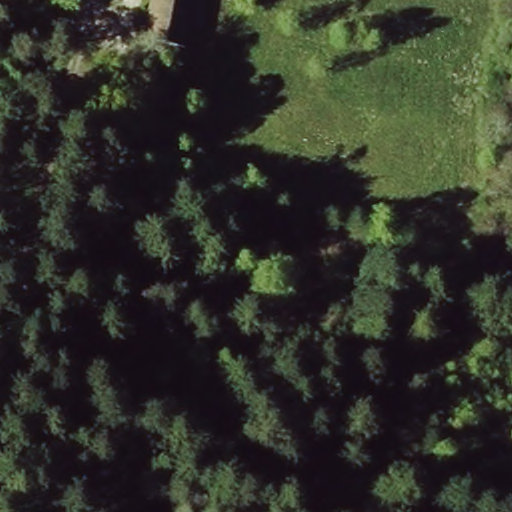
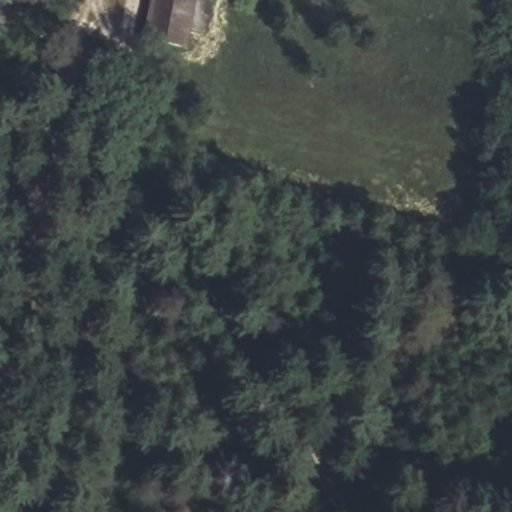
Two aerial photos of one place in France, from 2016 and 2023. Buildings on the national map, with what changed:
unchanged [(135,34),(141,0),(197,0),(188,46),(135,34)]

